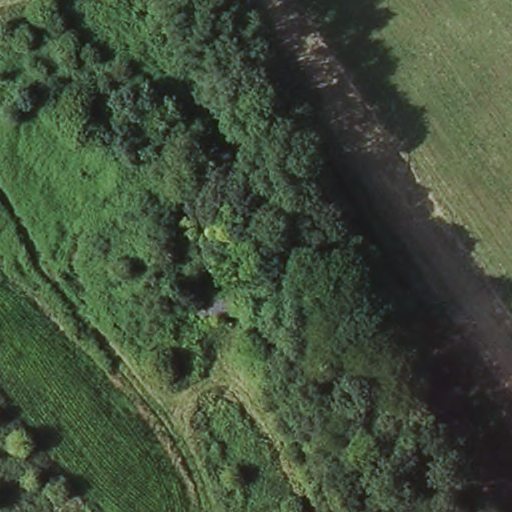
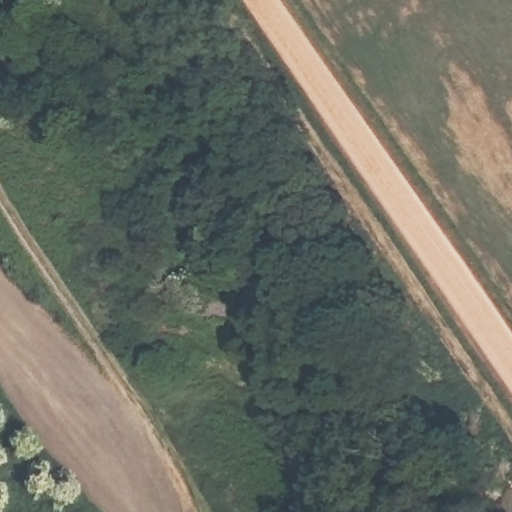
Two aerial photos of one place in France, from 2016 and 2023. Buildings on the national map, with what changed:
unchanged [(253,283),(254,307),(198,306),(198,282),(253,283)]

